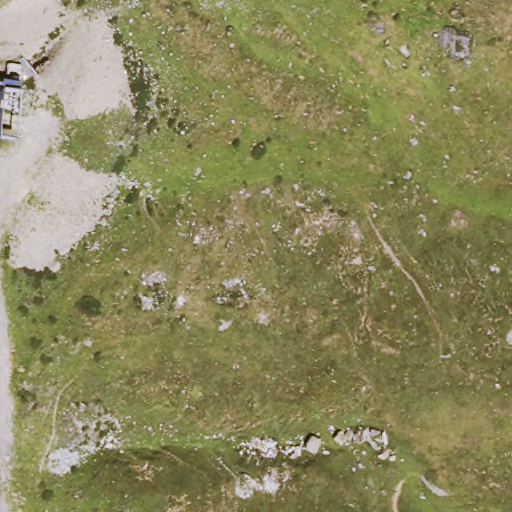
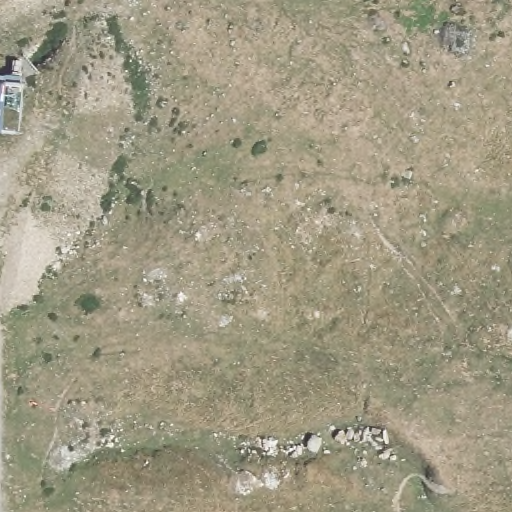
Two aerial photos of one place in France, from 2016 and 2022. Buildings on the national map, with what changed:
unchanged [(1,133),(0,133),(0,84),(5,84),(1,133)]

